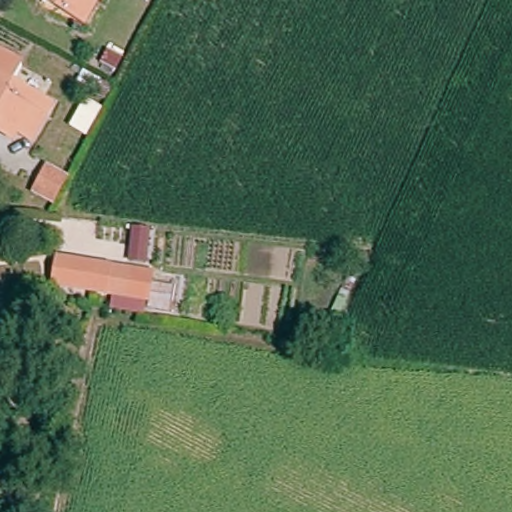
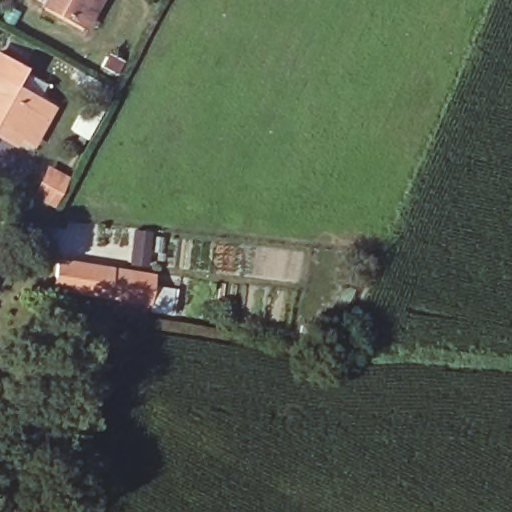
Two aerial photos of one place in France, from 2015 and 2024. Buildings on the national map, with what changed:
unchanged [(78,20),(50,5),(52,0),(106,0),(104,3),(92,27),(78,20)]
unchanged [(0,55),(21,67),(12,84),(56,107),(38,139),(25,132),(17,145),(0,135),(0,55)]
unchanged [(54,162),(72,171),(56,201),(39,192),(54,162)]
unchanged [(55,262),(143,277),(138,303),(51,289),(55,262)]

